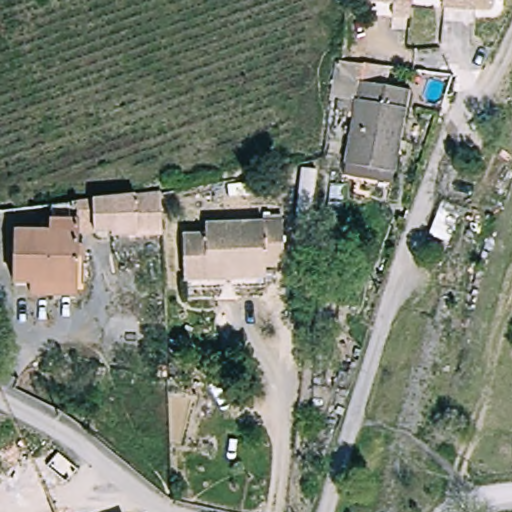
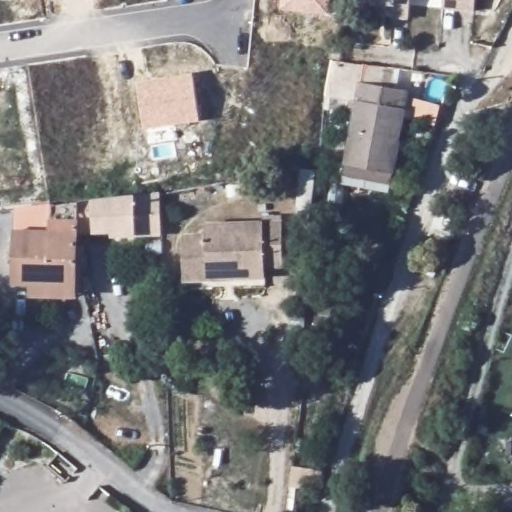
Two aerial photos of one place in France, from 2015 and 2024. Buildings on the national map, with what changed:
new [(281,9),(282,0),(330,0),(329,13),(281,9)]
unchanged [(393,14),(394,2),(372,0),(410,0),(409,15),(393,14)]
unchanged [(442,5),(443,0),(475,0),(474,9),(442,5)]
unchanged [(355,117),(347,116),(350,102),(340,101),(346,66),(374,71),(385,72),(382,89),(409,94),(401,146),(394,182),(384,180),(346,174),(348,162),(355,117)]
new [(193,73),(201,122),(145,129),(137,82),(193,73)]
unchanged [(49,237),(52,207),(80,203),(93,202),(159,195),(160,227),(112,232),(110,227),(79,230),(77,289),(13,286),(16,234),(49,237)]
unchanged [(221,243),(221,234),(278,234),(278,277),(222,278),(223,288),(190,289),(188,244),(221,243)]
unchanged [(47,466),(57,453),(77,470),(67,481),(47,466)]

